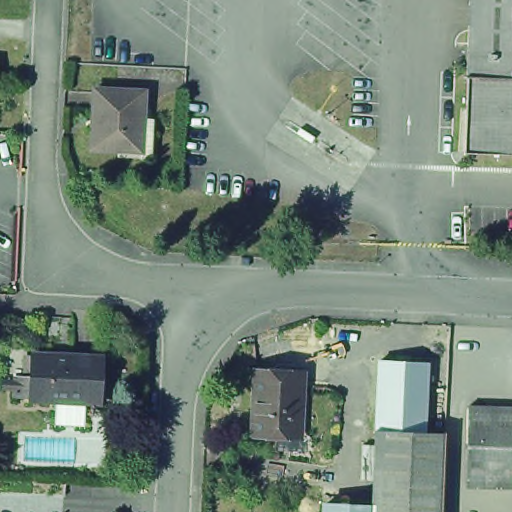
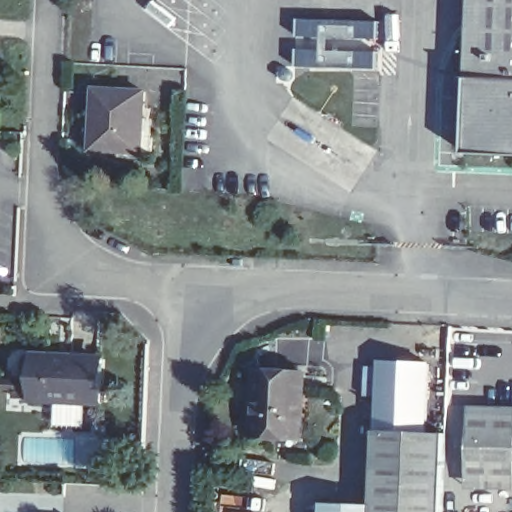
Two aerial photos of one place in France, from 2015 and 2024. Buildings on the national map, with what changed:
unchanged [(468,0),(512,0),(512,84),(464,82),(468,0)]
new [(384,71),(295,71),(298,17),(382,20),(384,71)]
unchanged [(464,82),(512,84),(512,159),(460,156),(464,82)]
unchanged [(141,91),(139,152),(89,150),(91,90),(141,91)]
unchanged [(19,384),(11,383),(11,375),(20,375),(20,372),(39,373),(40,356),(104,359),(103,397),(38,394),(19,393),(19,384)]
unchanged [(375,428),(379,359),(429,361),(425,431),(375,428)]
unchanged [(290,380),(287,439),(247,437),(251,378),(290,380)]
unchanged [(467,413),(512,415),(512,495),(478,493),(463,492),(465,451),(467,413)]
unchanged [(372,496),(372,487),(375,428),(425,431),(448,431),(445,490),(444,500),(443,512),(371,512),(372,496)]

